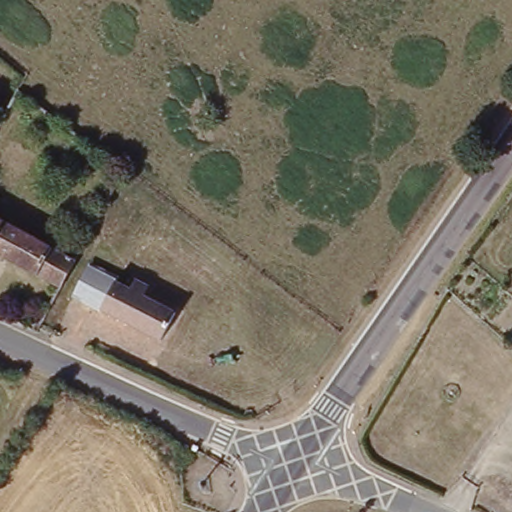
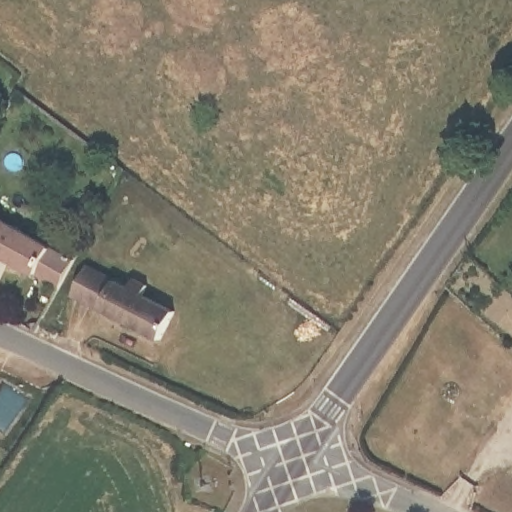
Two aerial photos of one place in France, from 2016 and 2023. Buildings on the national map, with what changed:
unchanged [(0,222),(56,255),(61,247),(70,252),(65,260),(71,264),(57,292),(0,258),(0,222)]
unchanged [(158,343),(100,311),(71,294),(88,264),(117,279),(133,286),(138,278),(151,284),(147,294),(176,308),(158,343)]

